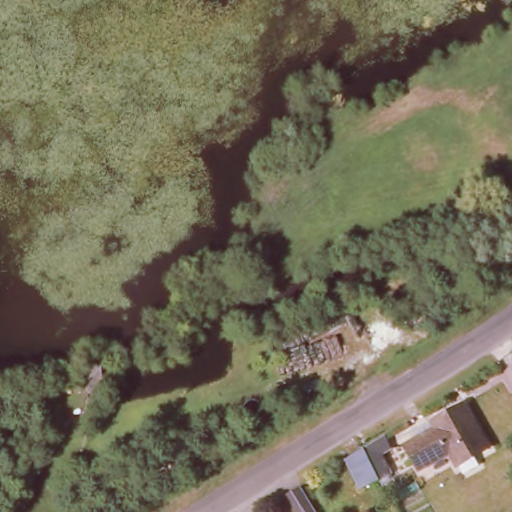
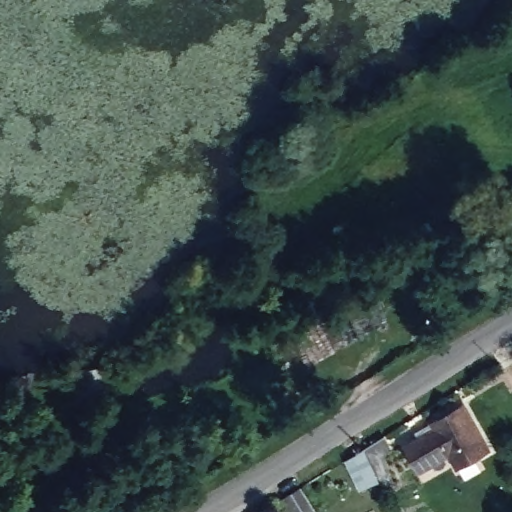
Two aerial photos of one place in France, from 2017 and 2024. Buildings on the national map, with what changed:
unchanged [(480,421),(490,437),(460,456),(453,445),(424,463),(410,440),(428,429),(424,422),(466,397),(480,421)]
unchanged [(379,451),(369,457),(380,476),(369,485),(352,453),(372,440),(379,451)]
unchanged [(320,512),(297,512),(287,496),(304,485),(320,512)]
unchanged [(375,512),(373,512),(375,511),(375,512)]

